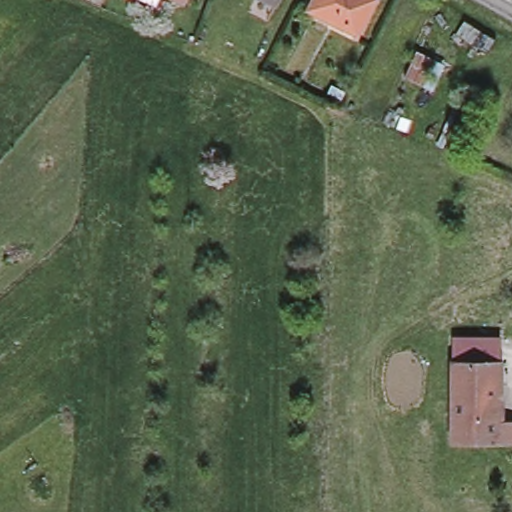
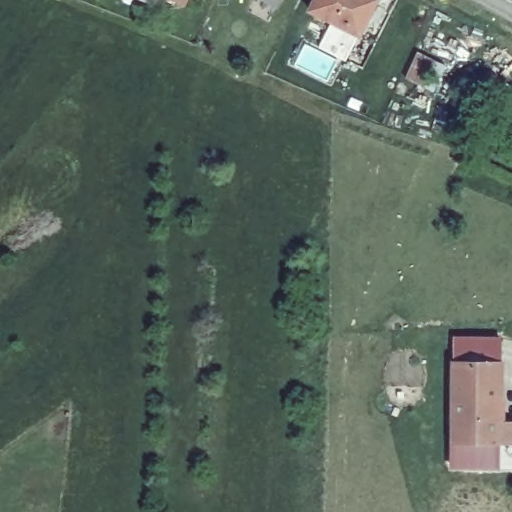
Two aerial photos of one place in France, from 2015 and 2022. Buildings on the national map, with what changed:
unchanged [(185,5),(180,3),(171,0),(187,0),(185,5)]
unchanged [(275,3),(268,0),(277,0),(275,3)]
unchanged [(360,37),(329,21),(310,10),(315,0),(376,0),(379,1),(360,37)]
unchanged [(500,337),(500,363),(452,363),(452,336),(500,337)]
unchanged [(500,402),(497,402),(497,441),(451,441),(452,363),(500,363),(500,402)]

